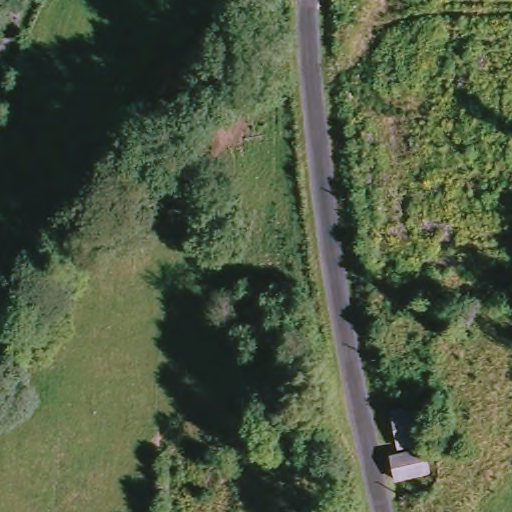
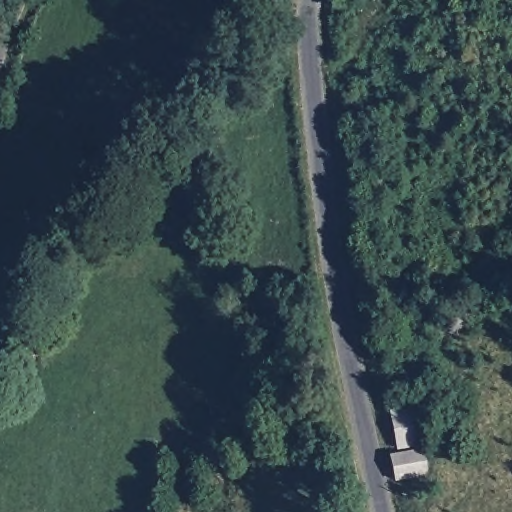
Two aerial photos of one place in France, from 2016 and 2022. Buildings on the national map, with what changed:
unchanged [(426,406),(432,437),(400,445),(394,414),(426,406)]
unchanged [(426,448),(432,473),(398,483),(391,456),(426,448)]

